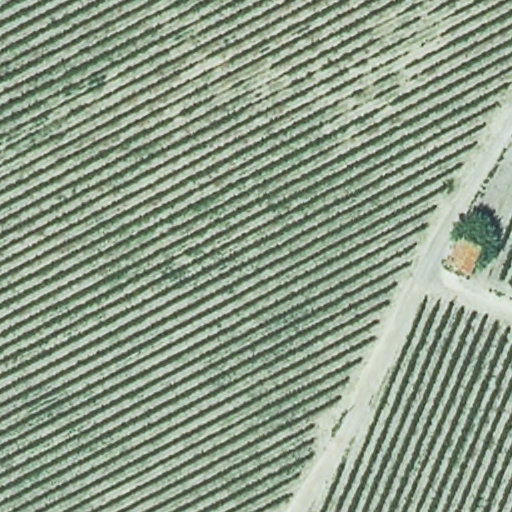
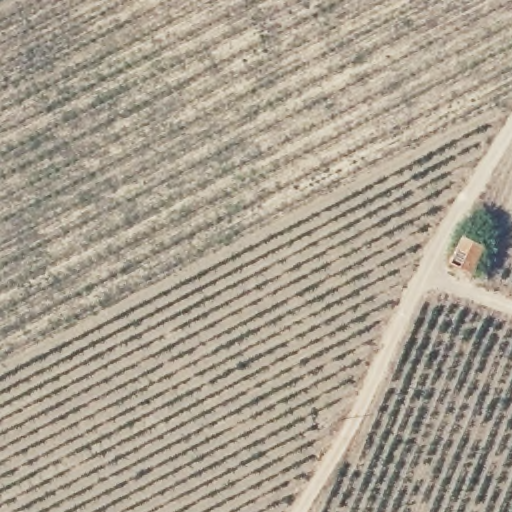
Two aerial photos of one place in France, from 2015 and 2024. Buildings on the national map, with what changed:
unchanged [(470,273),(446,261),(460,234),(483,245),(470,273)]

